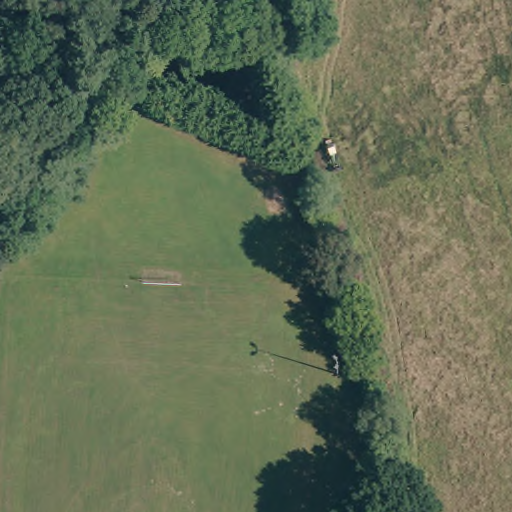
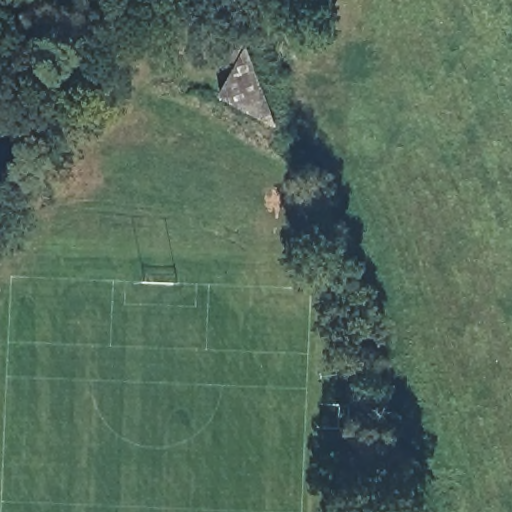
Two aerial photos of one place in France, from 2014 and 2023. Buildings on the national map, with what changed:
unchanged [(280,140),(221,101),(240,76),(196,36),(209,21),(259,68),(280,140)]

